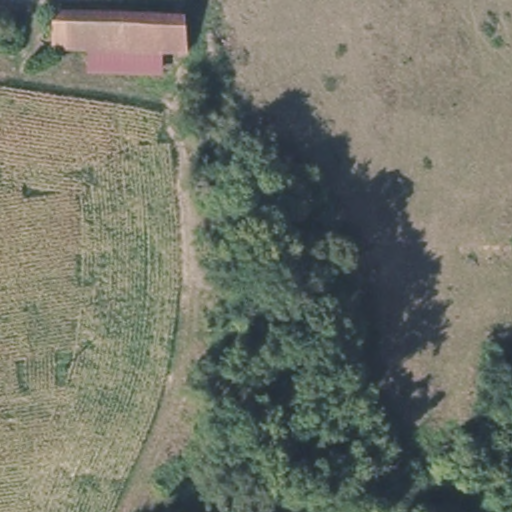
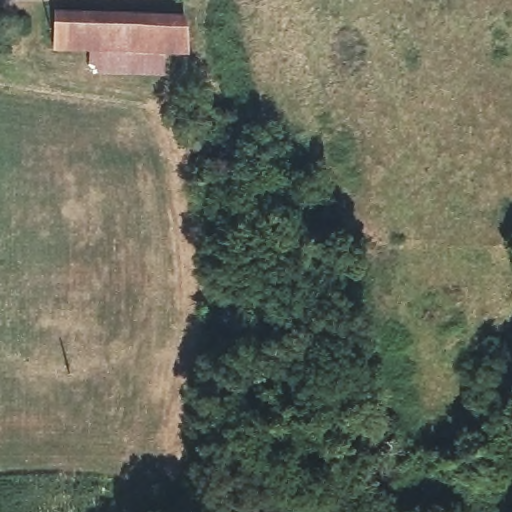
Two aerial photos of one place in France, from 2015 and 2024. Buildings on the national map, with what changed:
unchanged [(50,8),(179,11),(178,45),(50,46),(50,41),(50,8)]

